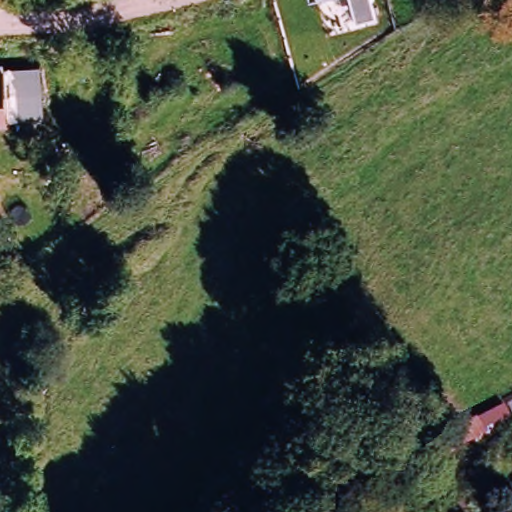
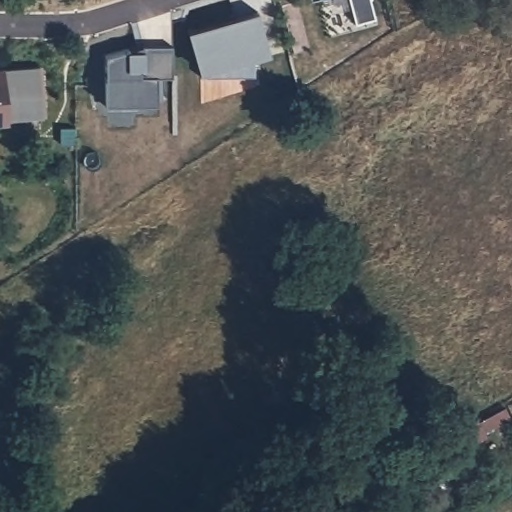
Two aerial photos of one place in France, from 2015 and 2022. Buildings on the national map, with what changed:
unchanged [(354,22),(348,0),(370,0),(375,16),(354,22)]
new [(125,48),(137,44),(132,22),(168,10),(168,75),(156,75),(156,97),(131,97),(132,106),(103,107),(102,79),(101,79),(101,55),(125,48)]
new [(253,13),(255,16),(253,16),(262,52),(248,56),(249,77),(195,78),(195,71),(186,34),(185,34),(183,31),(253,13)]
unchanged [(40,68),(42,116),(7,115),(7,124),(0,124),(0,70),(40,68)]
unchanged [(484,431),(477,419),(504,405),(510,415),(484,431)]

